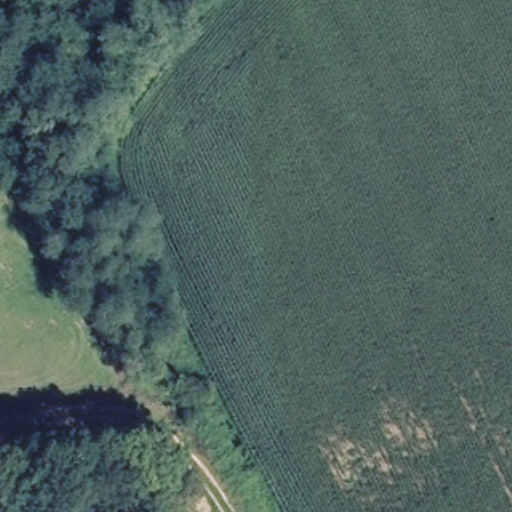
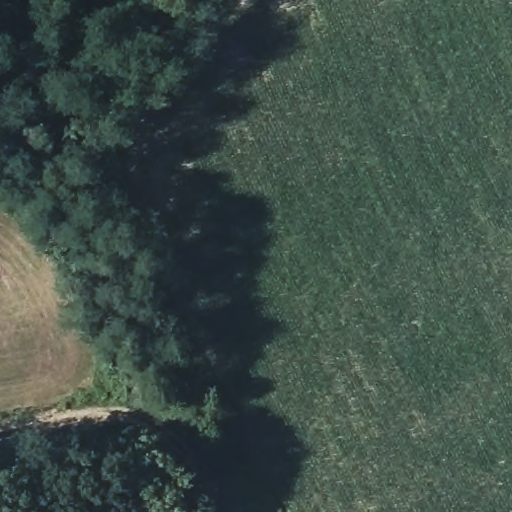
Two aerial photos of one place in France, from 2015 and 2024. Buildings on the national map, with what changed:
[]

